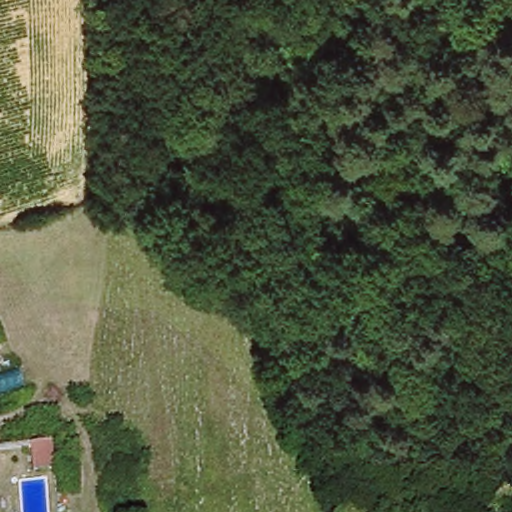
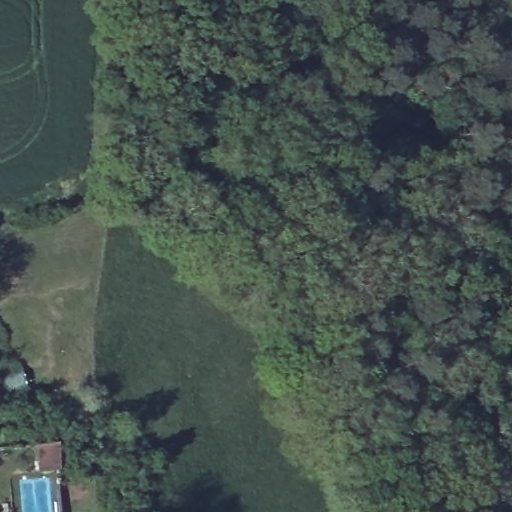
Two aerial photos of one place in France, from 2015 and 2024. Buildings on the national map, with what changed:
unchanged [(12,439),(38,438),(40,456),(15,456),(12,439)]

